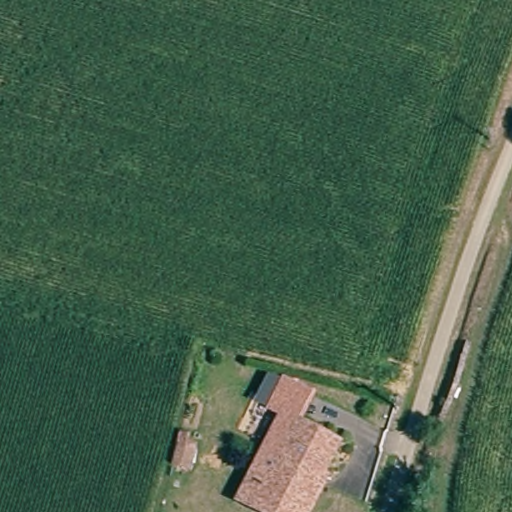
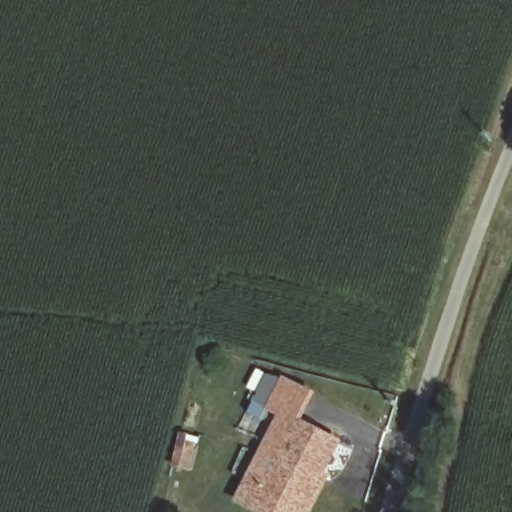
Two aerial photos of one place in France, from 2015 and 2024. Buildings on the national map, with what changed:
unchanged [(296,435),(262,497),(247,490),(281,427),(268,420),(283,391),(311,406),(296,435)]
unchanged [(262,497),(296,435),(335,456),(306,512),(235,512),(247,490),(262,497)]

